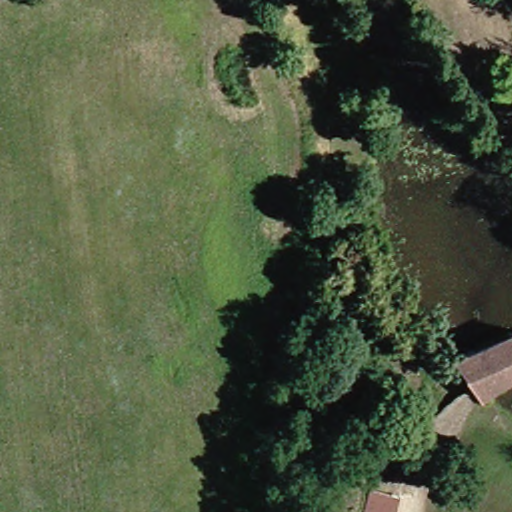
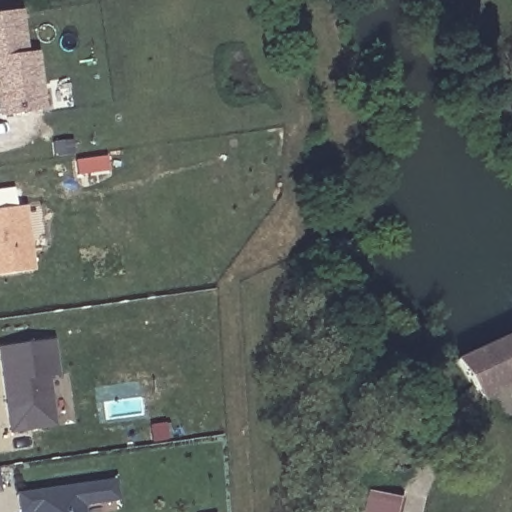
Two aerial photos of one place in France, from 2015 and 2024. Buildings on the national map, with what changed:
new [(9,16),(15,67),(25,65),(34,105),(0,111),(0,17),(9,16)]
new [(19,205),(28,270),(0,274),(0,207),(19,205)]
unchanged [(512,380),(485,394),(462,360),(512,337),(512,380)]
new [(56,376),(45,378),(51,427),(7,435),(0,382),(0,348),(51,342),(56,376)]
new [(14,497),(110,484),(113,512),(16,512),(14,497)]
new [(372,493),(403,500),(401,512),(368,512),(372,493)]

